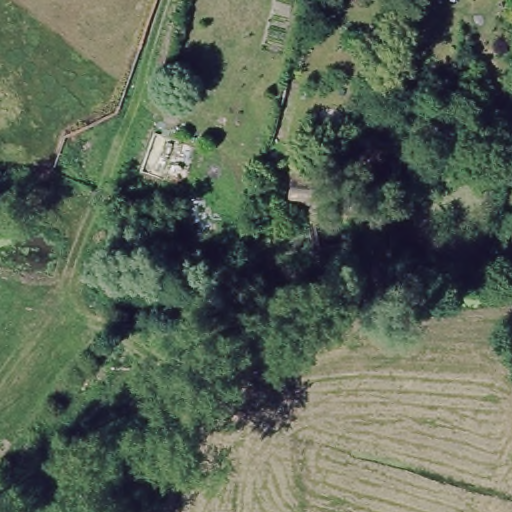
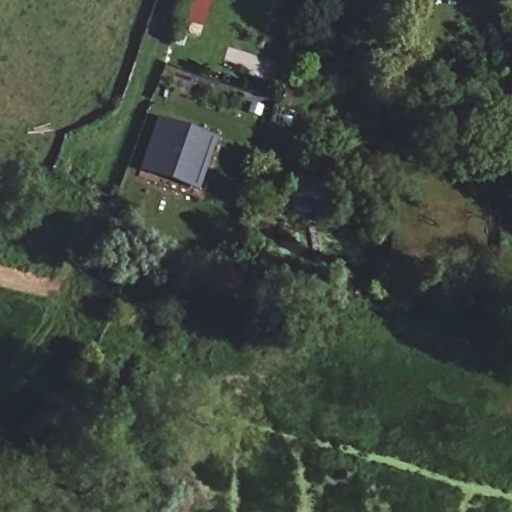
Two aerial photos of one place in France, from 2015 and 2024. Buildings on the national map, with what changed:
new [(157,118),(216,138),(197,192),(138,171),(157,118)]

